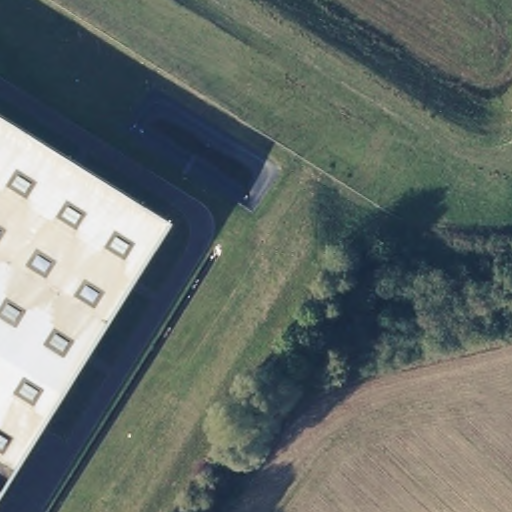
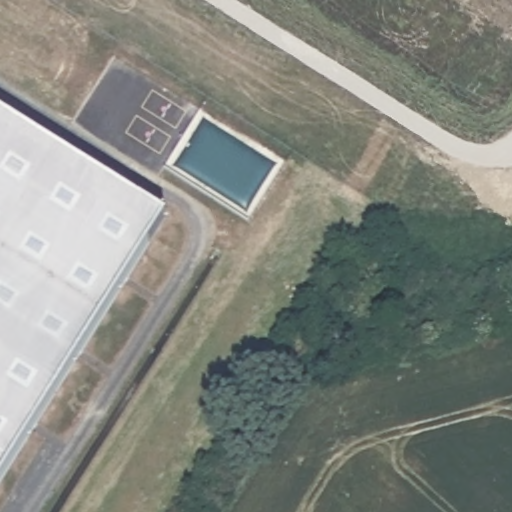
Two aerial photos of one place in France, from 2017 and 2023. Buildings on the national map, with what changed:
unchanged [(0,114),(166,217),(0,483),(0,114)]

